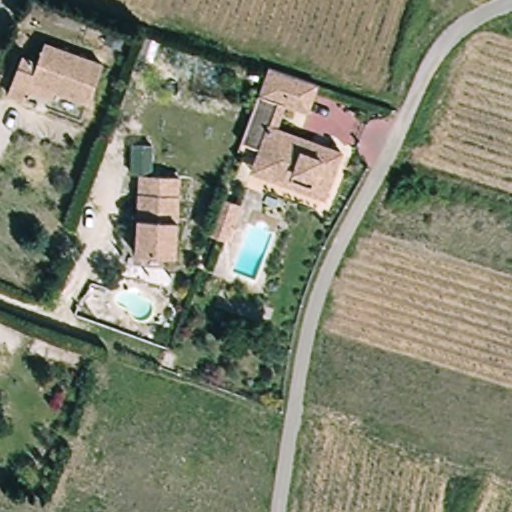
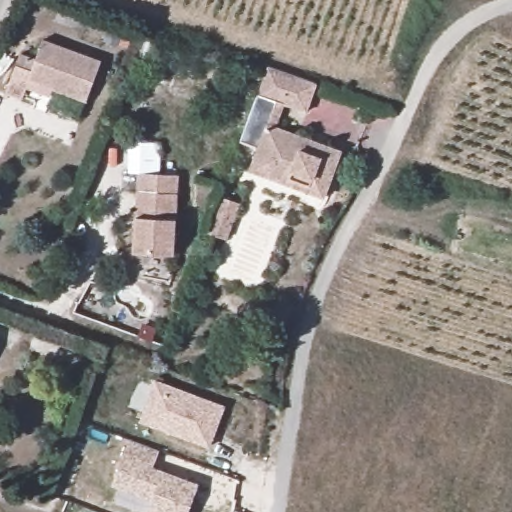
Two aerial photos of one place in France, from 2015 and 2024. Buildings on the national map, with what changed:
unchanged [(29,84),(33,74),(35,67),(22,61),(27,49),(40,55),(47,34),(106,55),(90,99),(59,85),(55,94),(29,84)]
unchanged [(276,177),(256,170),(261,159),(266,145),(247,138),(276,65),(301,73),(323,81),(313,107),(293,102),(286,124),(349,149),(331,199),(317,194),(294,185),(276,177)]
unchanged [(147,164),(187,166),(182,249),(142,247),(147,164)]
unchanged [(225,192),(245,201),(231,239),(210,231),(225,192)]
new [(226,405),(210,448),(140,421),(156,380),(226,405)]
new [(160,453),(154,470),(199,486),(190,512),(150,512),(154,501),(114,487),(129,442),(160,453)]

